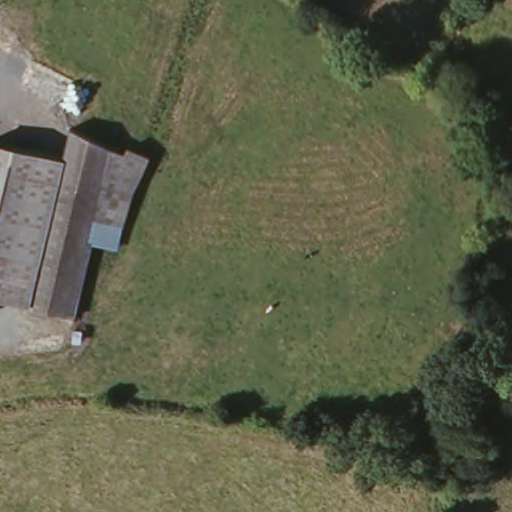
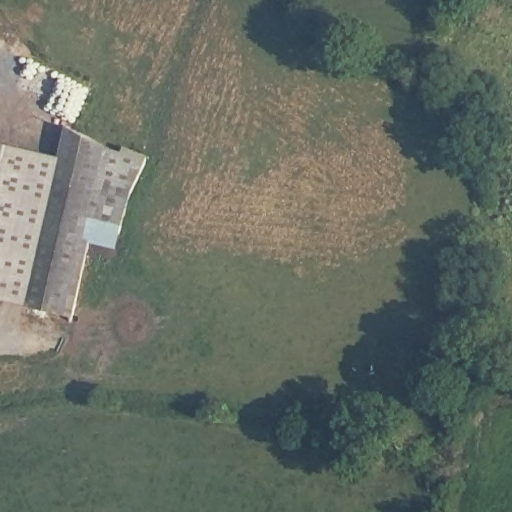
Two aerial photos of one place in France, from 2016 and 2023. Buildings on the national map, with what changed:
unchanged [(62,159),(67,126),(122,153),(127,149),(152,160),(130,193),(115,249),(89,245),(71,319),(29,305),(0,299),(0,144),(62,159)]

